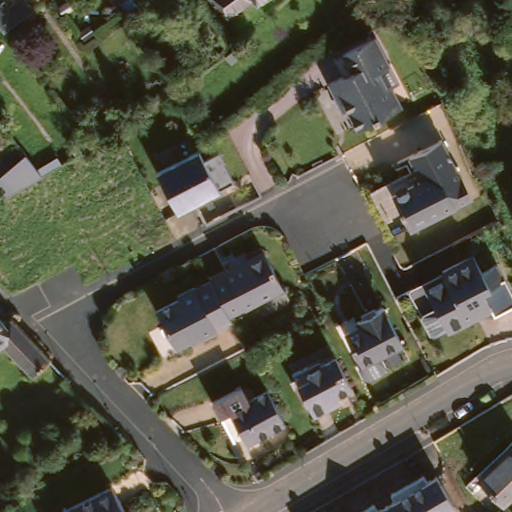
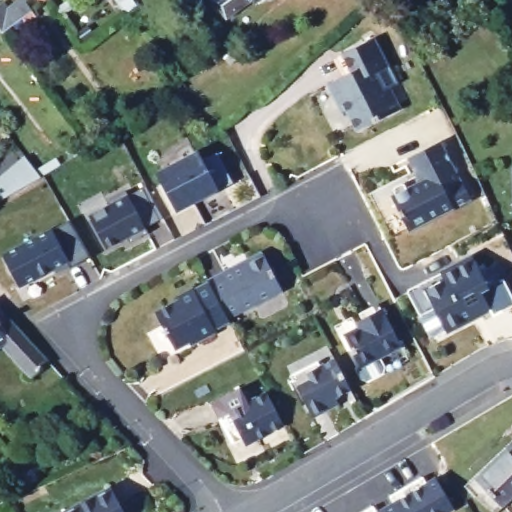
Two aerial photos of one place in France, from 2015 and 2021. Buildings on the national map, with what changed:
unchanged [(12,0),(31,0),(39,11),(27,19),(24,14),(5,27),(0,21),(0,0),(8,0),(9,2),(12,0)]
unchanged [(41,0),(49,0),(44,3),(41,0)]
unchanged [(128,0),(133,0),(130,2),(128,0)]
unchanged [(218,0),(255,0),(228,16),(218,0)]
unchanged [(258,2),(257,0),(261,0),(260,1),(258,2)]
unchanged [(428,9),(443,0),(455,0),(432,15),(428,9)]
unchanged [(342,109),(336,108),(325,86),(348,74),(339,56),(371,40),(385,67),(395,86),(387,89),(397,110),(355,132),(342,109)]
unchanged [(452,211),(407,234),(390,199),(418,185),(407,160),(439,144),(460,185),(443,194),(452,211)]
unchanged [(153,166),(192,147),(197,157),(211,149),(226,180),(170,208),(150,169),(150,168),(153,166)]
new [(57,158),(62,164),(2,202),(0,199),(0,178),(26,156),(37,169),(57,158)]
demolished [(31,168),(34,171),(0,190),(0,181),(28,164),(31,168)]
new [(105,207),(104,202),(127,191),(131,195),(147,187),(164,219),(151,227),(109,250),(89,215),(105,207)]
new [(70,219),(91,258),(72,269),(68,263),(20,287),(1,255),(70,219)]
unchanged [(217,268),(219,271),(237,260),(239,255),(250,248),(256,250),(265,266),(275,283),(270,286),(224,313),(205,275),(217,268)]
unchanged [(481,308),(462,317),(464,320),(440,333),(427,339),(422,338),(415,324),(417,318),(428,312),(418,292),(437,281),(434,275),(465,258),(473,274),(483,268),(488,266),(509,306),(505,308),(486,318),(481,308)]
unchanged [(222,314),(224,317),(210,326),(212,329),(195,339),(194,335),(171,348),(150,312),(172,299),(170,295),(186,286),(187,288),(202,279),(201,277),(205,275),(224,313),(222,314)]
unchanged [(376,359),(375,364),(359,371),(354,370),(349,360),(352,358),(336,325),(361,313),(359,308),(376,300),(394,338),(372,349),(376,359)]
unchanged [(11,354),(0,343),(0,320),(7,314),(13,320),(31,340),(47,357),(27,373),(11,354)]
unchanged [(305,407),(288,376),(302,368),(305,373),(332,359),(348,390),(332,398),(336,405),(323,411),(310,418),(305,407)]
unchanged [(282,425),(282,427),(244,447),(241,440),(231,445),(210,404),(239,389),(247,403),(265,394),(266,393),(282,425)]
unchanged [(502,507),(477,479),(512,449),(512,498),(502,507)]
unchanged [(437,476),(453,508),(448,512),(380,512),(395,503),(390,496),(422,477),(427,481),(437,476)]
unchanged [(106,485),(120,512),(56,512),(56,510),(106,485)]
unchanged [(374,506),(378,512),(364,512),(374,506)]

